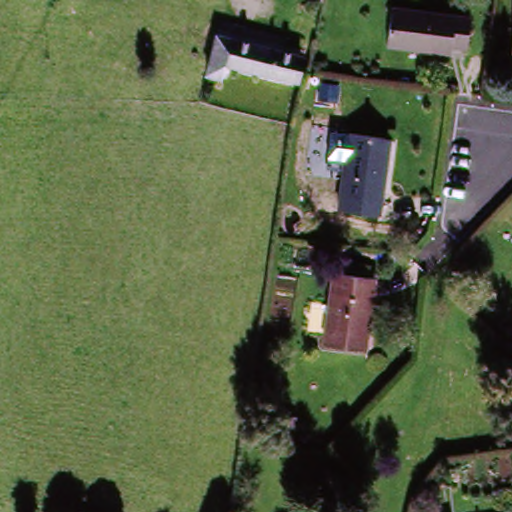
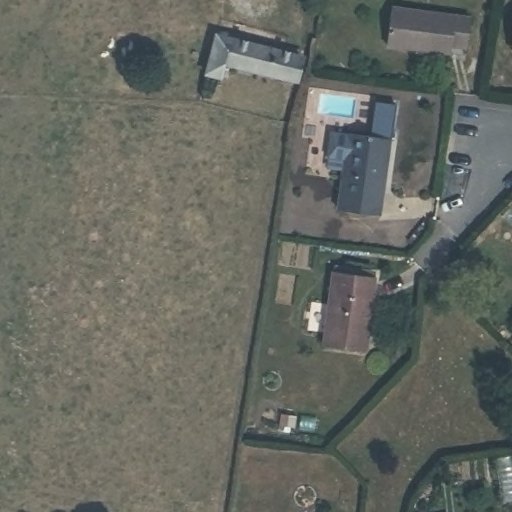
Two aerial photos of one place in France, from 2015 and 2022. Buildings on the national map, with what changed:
unchanged [(452,49),(387,41),(392,5),(456,15),(471,16),(467,45),(452,44),(452,49)]
unchanged [(202,69),(214,29),(297,52),(289,80),(217,61),(215,72),(202,69)]
unchanged [(391,144),(380,220),(338,214),(350,137),(391,144)]
unchanged [(360,348),(319,342),(329,271),(370,277),(360,348)]

